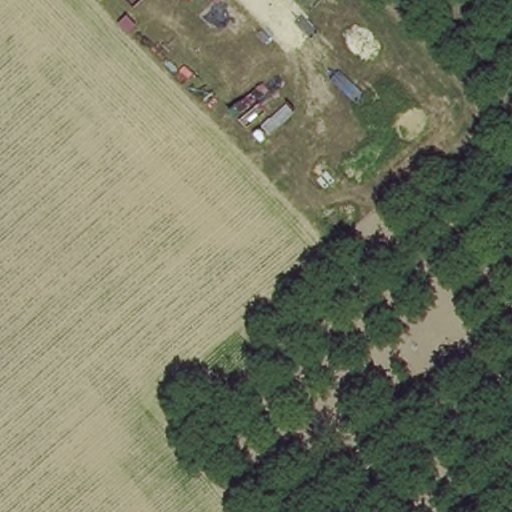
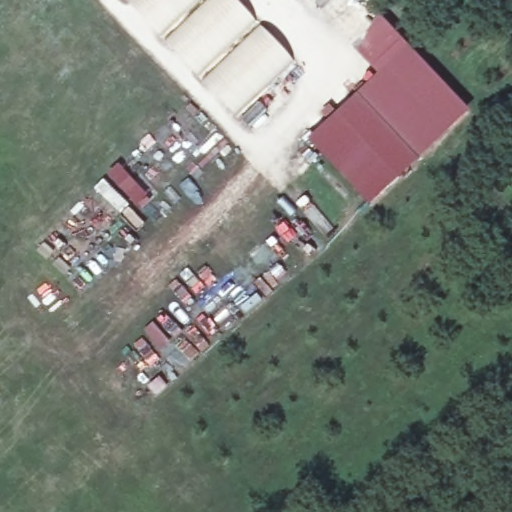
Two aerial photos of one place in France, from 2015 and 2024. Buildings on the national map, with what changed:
new [(127,3),(130,0),(198,0),(160,37),(127,3)]
new [(165,41),(208,0),(234,0),(255,21),(197,74),(165,41)]
new [(236,116),(203,81),(262,27),(293,61),(236,116)]
new [(358,94),(409,45),(470,110),(419,159),(369,207),(309,141),(358,94)]

